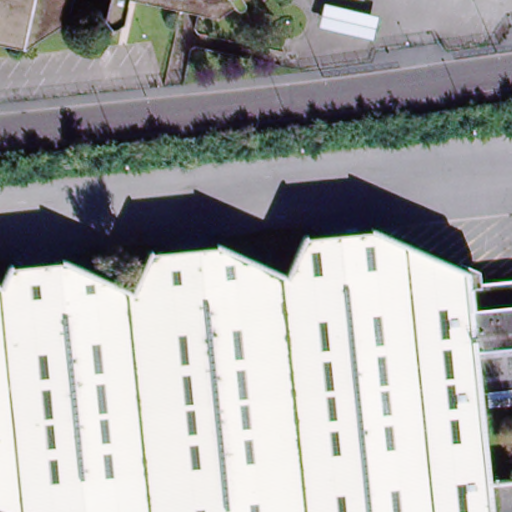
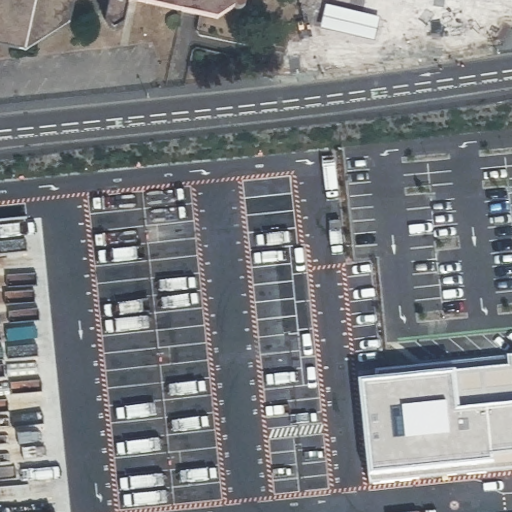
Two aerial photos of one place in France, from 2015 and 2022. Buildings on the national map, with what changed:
unchanged [(75,25),(30,53),(0,47),(0,0),(81,0),(75,25)]
unchanged [(247,5),(248,5),(248,6),(248,7),(249,8),(249,9),(249,10),(248,10),(248,11),(248,12),(247,12),(247,13),(246,13),(245,13),(244,13),(244,14),(243,14),(242,13),(241,13),(240,12),(239,12),(239,11),(239,10),(239,9),(223,21),(134,2),(129,26),(118,34),(111,24),(117,0),(254,0),(247,5)]
new [(304,183),(337,492),(147,512),(0,512),(0,215),(304,183)]
demolished [(9,290),(20,268),(67,264),(140,296),(161,254),(220,248),(294,281),(314,239),(377,233),(470,276),(471,286),(512,282),(512,512),(0,512),(0,286),(9,290)]
new [(506,360),(512,360),(512,473),(502,474),(379,487),(370,488),(359,384),(508,369),(506,360)]

